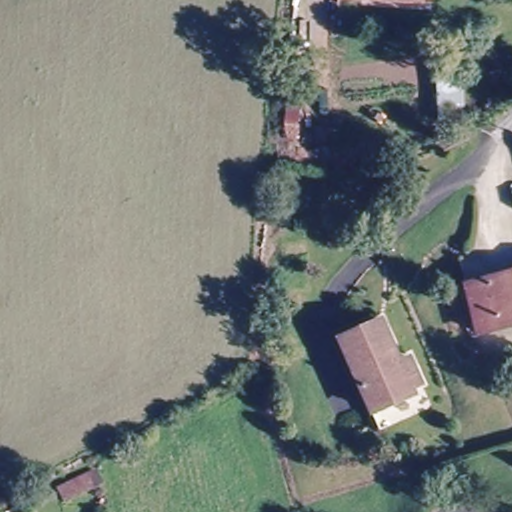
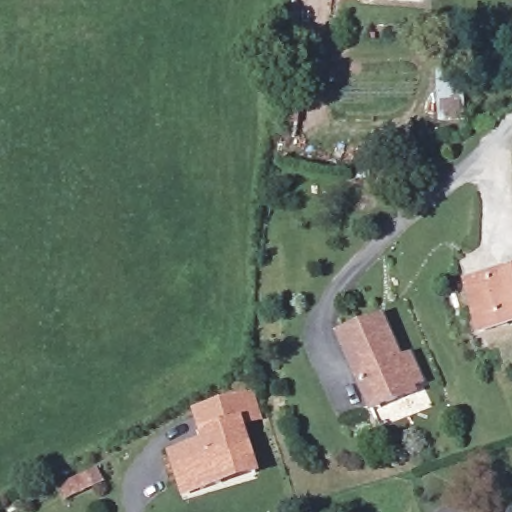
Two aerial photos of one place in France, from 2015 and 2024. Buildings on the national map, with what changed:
unchanged [(423,7),(342,0),(424,0),(423,7)]
unchanged [(399,193),(384,199),(378,184),(394,177),(399,193)]
unchanged [(512,272),(512,325),(474,334),(463,284),(512,272)]
unchanged [(387,323),(403,361),(414,360),(423,385),(416,389),(417,397),(371,418),(340,340),(387,323)]
new [(262,419),(244,424),(259,475),(182,499),(166,451),(201,439),(191,411),(254,392),(262,419)]

